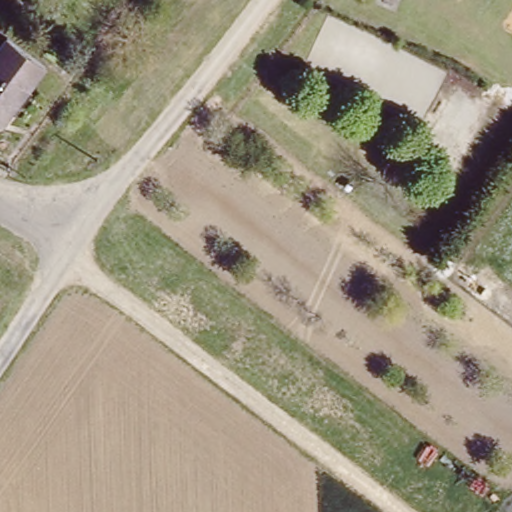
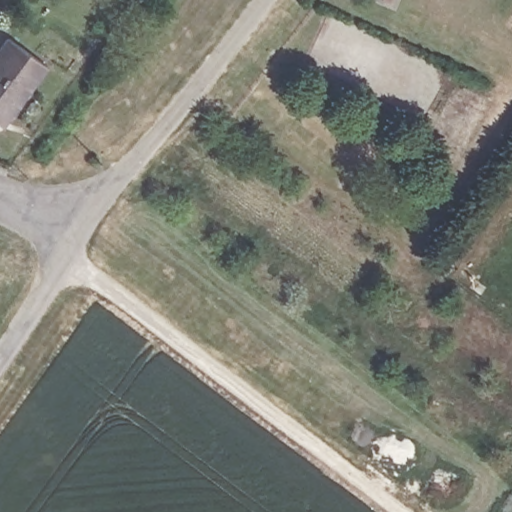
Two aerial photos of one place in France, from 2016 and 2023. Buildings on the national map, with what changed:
unchanged [(0,120),(0,47),(9,35),(37,56),(45,63),(1,121),(0,120)]

